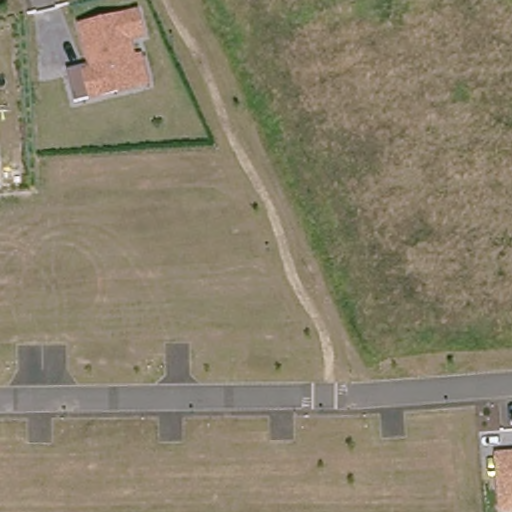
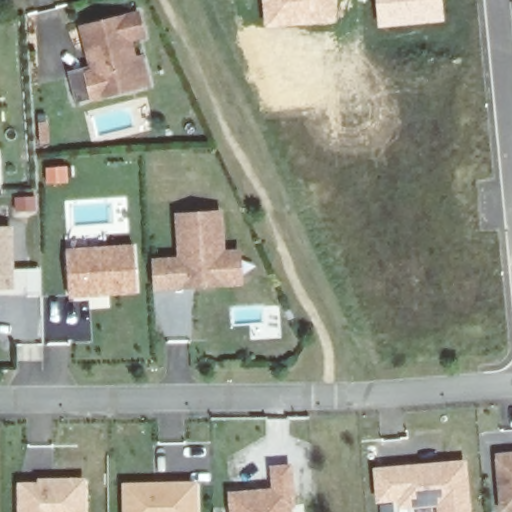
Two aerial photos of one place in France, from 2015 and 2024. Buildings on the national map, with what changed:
new [(264,27),(261,0),(335,0),(337,22),(264,27)]
new [(377,28),(374,0),(442,0),(445,21),(377,28)]
unchanged [(146,85),(115,93),(74,104),(68,79),(91,72),(90,65),(88,64),(78,29),(134,14),(141,37),(126,41),(131,60),(139,58),(146,85)]
new [(190,220),(232,217),(236,259),(242,258),(252,258),(254,290),(245,290),(200,294),(182,295),(164,296),(162,268),(179,267),(193,266),(190,220)]
unchanged [(0,240),(25,242),(26,283),(41,283),(41,307),(10,305),(10,300),(0,299),(0,240)]
new [(70,295),(66,254),(134,249),(137,291),(70,295)]
unchanged [(265,478),(263,455),(278,454),(281,492),(279,492),(280,512),(227,512),(225,481),(265,478)]
unchanged [(511,510),(506,456),(512,455),(512,510),(511,510)]
new [(467,460),(471,512),(436,512),(436,507),(396,510),(396,512),(380,512),(379,505),(376,505),(373,467),(467,460)]
new [(36,482),(36,477),(86,477),(86,512),(18,512),(18,482),(36,482)]
new [(198,481),(198,512),(122,512),(121,483),(198,481)]

